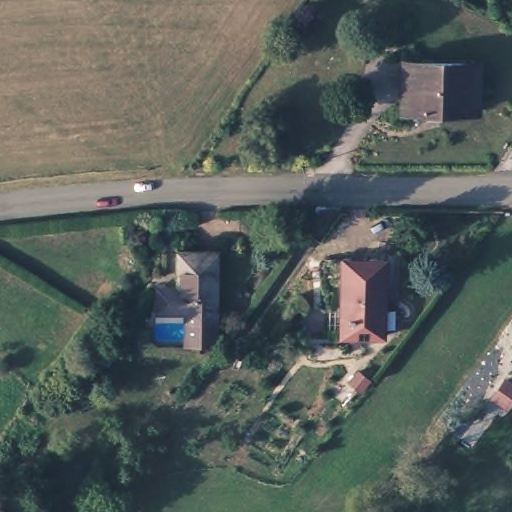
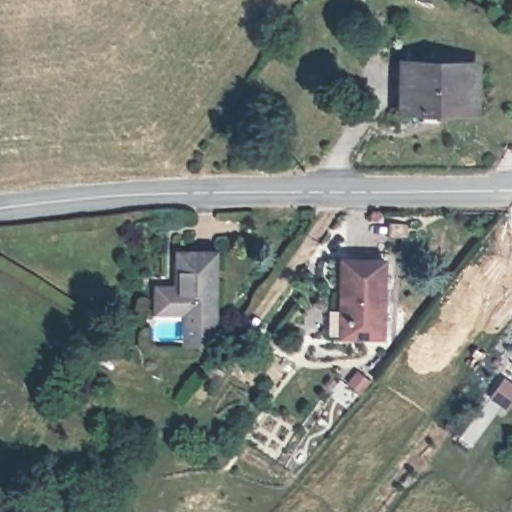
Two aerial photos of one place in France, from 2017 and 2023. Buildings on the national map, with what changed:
unchanged [(405,75),(407,52),(473,54),(472,102),(400,101),(400,75),(405,75)]
unchanged [(187,337),(186,306),(157,307),(157,281),(176,281),(177,247),(215,247),(215,307),(215,337),(187,337)]
unchanged [(385,256),(383,332),(350,333),(350,297),(342,297),(342,255),(385,256)]

